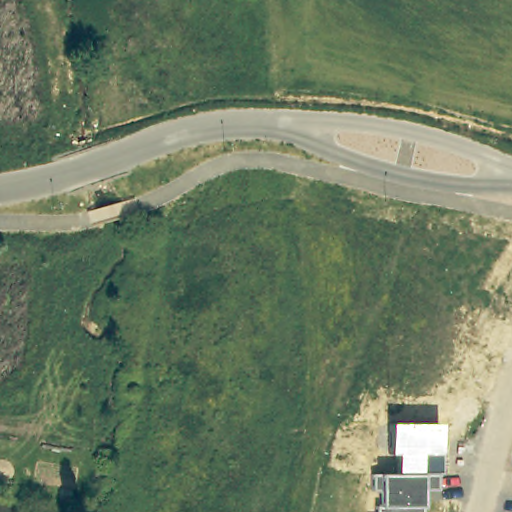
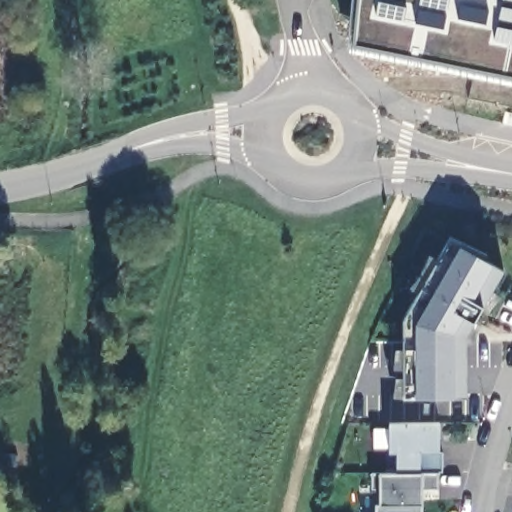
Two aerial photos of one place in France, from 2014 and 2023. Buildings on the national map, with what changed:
new [(346,49),(351,0),(512,0),(512,84),(346,49)]
new [(468,337),(468,398),(454,398),(416,398),(403,397),(405,318),(450,240),(461,247),(493,265),(504,271),(468,337)]
unchanged [(439,488),(423,490),(423,506),(423,512),(376,512),(377,506),(380,505),(380,488),(371,489),(371,474),(381,473),(397,472),(397,453),(390,453),(392,423),(441,423),(440,453),(440,473),(439,488)]

